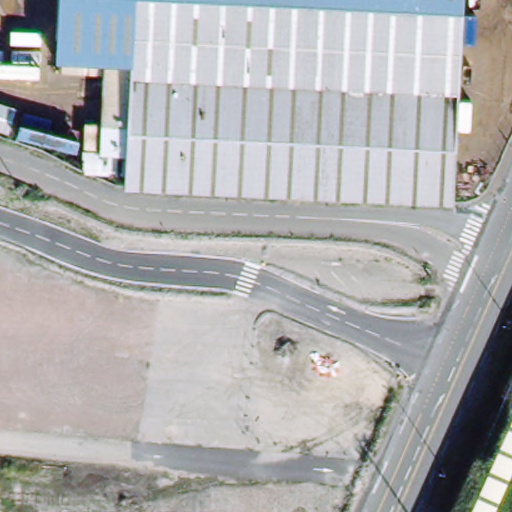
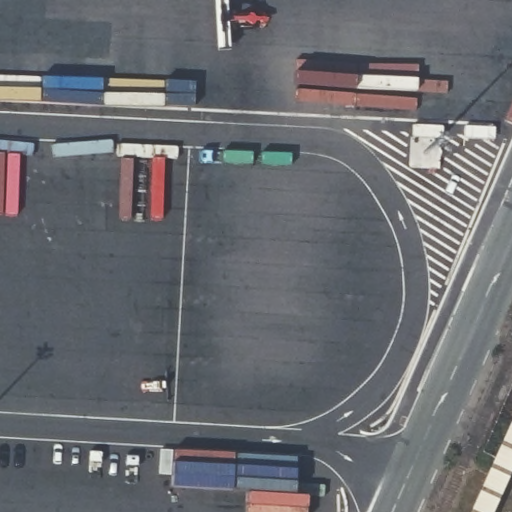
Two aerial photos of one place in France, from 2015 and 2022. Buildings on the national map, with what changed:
demolished [(102,155),(128,157),(132,65),(106,64),(99,64),(61,61),(57,60),(60,0),(465,0),(456,202),(126,189),(127,172),(83,170),(84,154),(102,155)]

